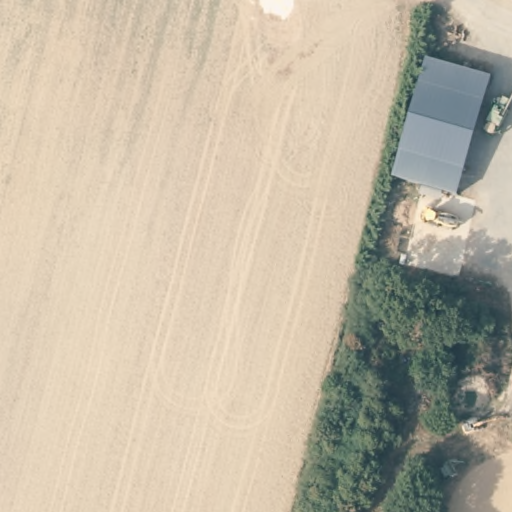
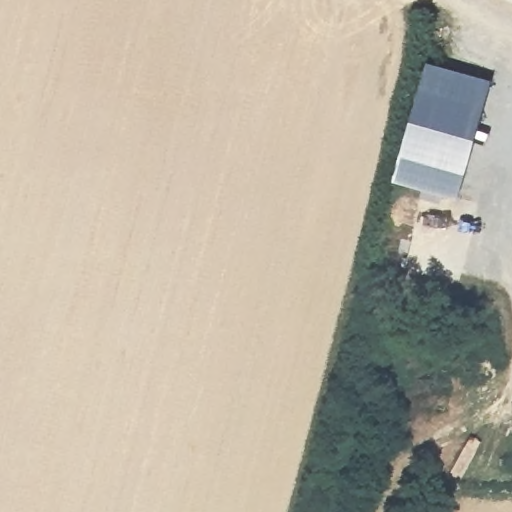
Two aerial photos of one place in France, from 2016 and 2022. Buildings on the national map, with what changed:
unchanged [(421,88),(427,61),(492,79),(485,106),(466,174),(459,200),(395,180),(401,155),(421,88)]

